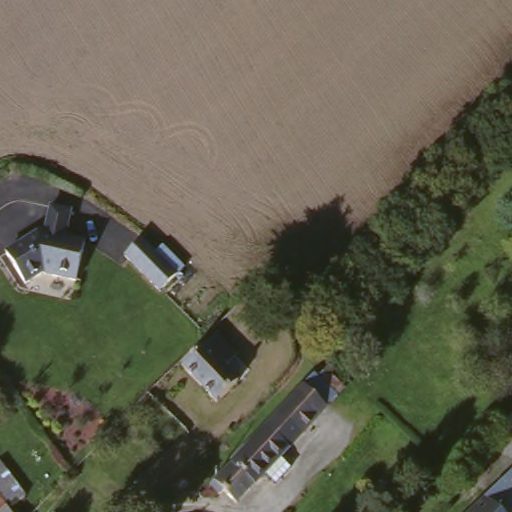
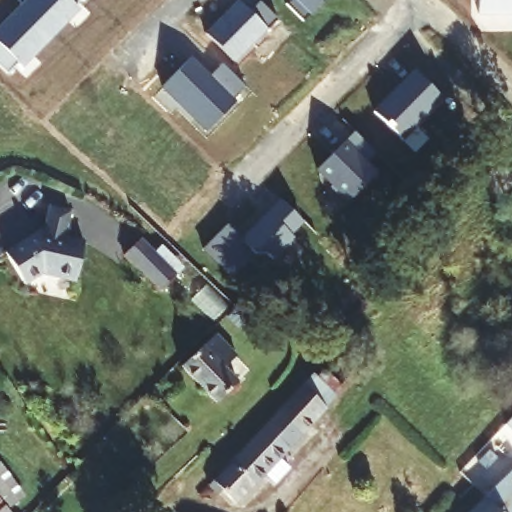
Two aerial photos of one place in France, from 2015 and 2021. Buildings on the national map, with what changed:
new [(77,4),(81,7),(24,65),(20,62),(9,74),(0,65),(0,28),(27,0),(81,0),(77,4)]
new [(251,13),(262,2),(264,5),(279,19),(236,62),(206,32),(239,0),(251,13)]
new [(304,20),(286,4),(290,0),(324,0),(304,20)]
new [(480,15),(480,1),(476,1),(476,0),(512,0),(512,14),(480,15)]
new [(191,57),(211,76),(224,63),(246,85),(233,99),(236,102),(208,130),(164,85),(191,57)]
new [(417,70),(446,98),(405,140),(376,111),(417,70)]
new [(358,130),(379,152),(369,162),(379,173),(352,200),(320,169),(347,141),(358,130)]
unchanged [(39,276),(19,290),(0,259),(0,252),(44,225),(48,207),(71,212),(66,235),(82,237),(78,282),(39,276)]
unchanged [(142,235),(176,270),(151,293),(114,260),(142,235)]
unchanged [(238,363),(223,376),(238,391),(218,411),(180,375),(216,340),(238,363)]
unchanged [(231,467),(308,373),(328,394),(253,486),(236,506),(216,488),(231,467)]
unchanged [(504,425),(512,417),(512,432),(504,425)]
unchanged [(14,510),(0,495),(0,471),(26,500),(14,510)]
unchanged [(512,471),(512,512),(469,512),(483,499),(512,471)]
unchanged [(0,512),(0,506),(5,512),(0,512)]

